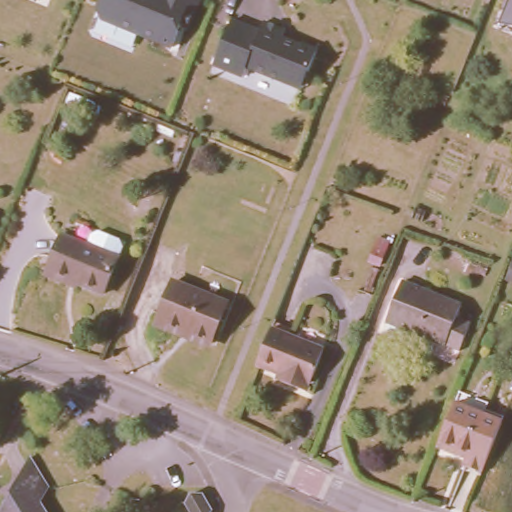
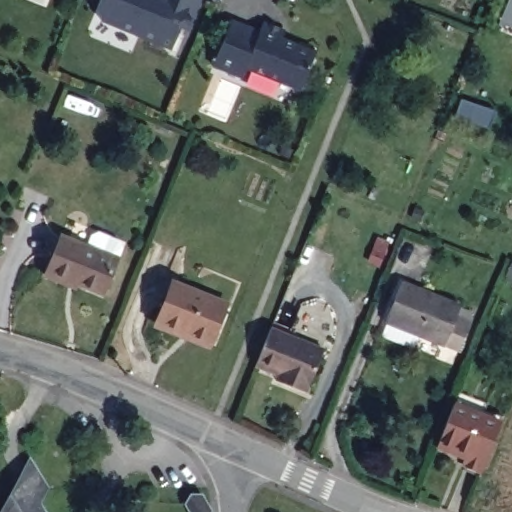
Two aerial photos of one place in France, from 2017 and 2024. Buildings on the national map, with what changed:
unchanged [(95,10),(99,0),(201,0),(189,31),(179,28),(172,49),(100,21),(95,10)]
unchanged [(509,0),(512,0),(512,26),(499,25),(509,0)]
unchanged [(239,11),(320,47),(305,90),(249,68),(246,76),(216,65),(239,11)]
unchanged [(116,252),(103,301),(36,275),(57,221),(116,252)]
unchanged [(228,291),(213,342),(149,320),(168,272),(228,291)]
unchanged [(399,288),(468,316),(453,353),(384,326),(399,288)]
unchanged [(323,354),(302,388),(248,362),(272,320),(323,354)]
unchanged [(484,470),(431,450),(448,395),(498,420),(484,470)]
unchanged [(3,478),(29,454),(50,486),(35,495),(45,512),(0,512),(0,487),(3,478)]
unchanged [(197,494),(199,495),(204,499),(209,504),(212,512),(189,512),(188,512),(187,504),(189,498),(197,494)]

